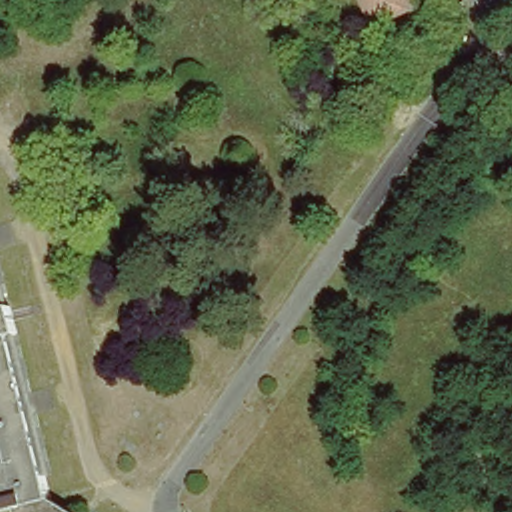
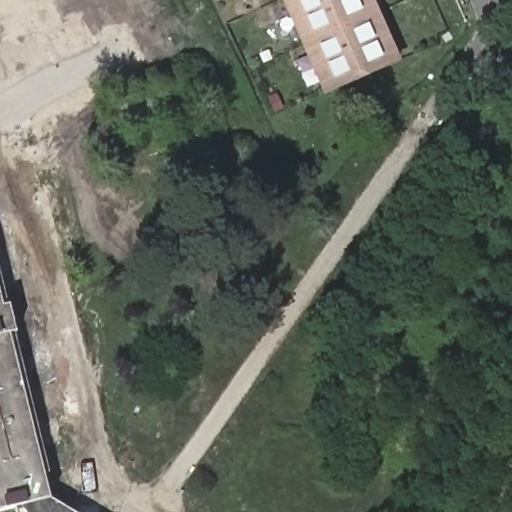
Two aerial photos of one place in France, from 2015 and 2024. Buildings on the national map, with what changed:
new [(402,63),(325,97),(282,0),(374,0),(402,63)]
demolished [(413,9),(374,26),(362,0),(409,0),(413,9)]
unchanged [(0,507),(0,292),(2,302),(10,301),(16,327),(10,329),(49,494),(78,512),(20,512),(17,502),(0,507)]

